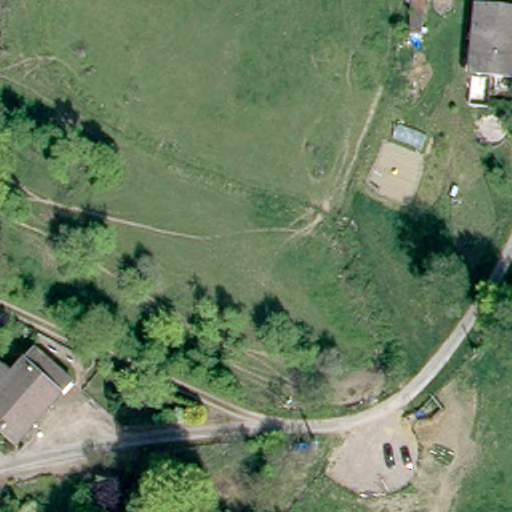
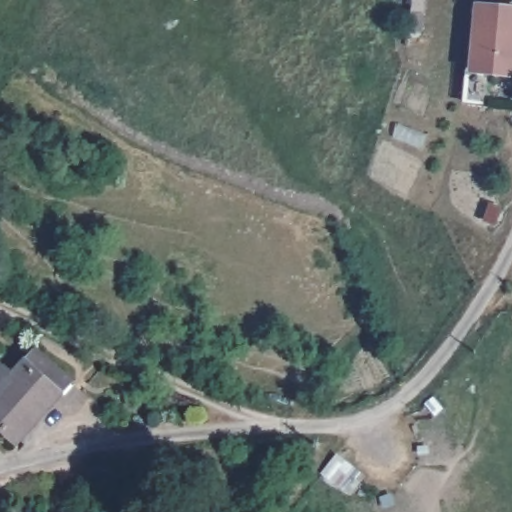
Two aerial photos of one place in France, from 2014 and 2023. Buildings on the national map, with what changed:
unchanged [(476,64),(479,18),(479,14),(512,15),(512,26),(509,66),(476,64)]
unchanged [(0,369),(7,375),(21,360),(32,347),(71,382),(16,443),(0,429),(0,369)]

